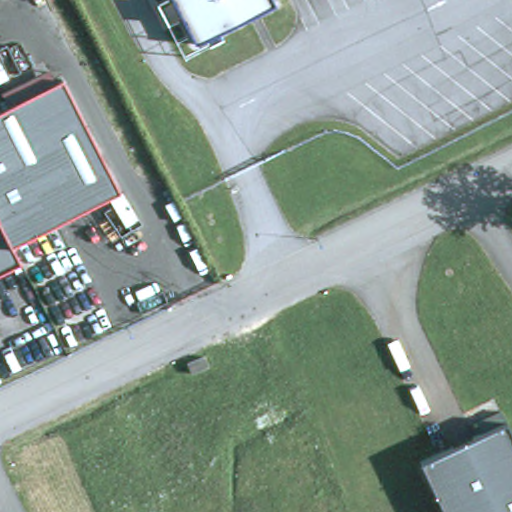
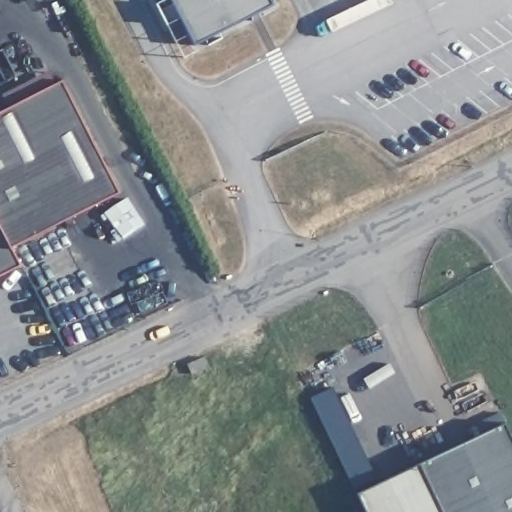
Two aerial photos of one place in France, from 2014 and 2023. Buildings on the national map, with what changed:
unchanged [(275,4),(196,40),(177,12),(164,19),(155,0),(273,0),(275,4)]
unchanged [(122,192),(17,245),(26,262),(0,275),(0,108),(65,77),(122,192)]
unchanged [(172,372),(197,362),(202,375),(178,386),(172,372)]
new [(311,395),(332,385),(377,483),(420,463),(444,512),(367,512),(357,492),(311,395)]
unchanged [(504,418),(512,435),(512,512),(445,512),(419,462),(504,418)]

